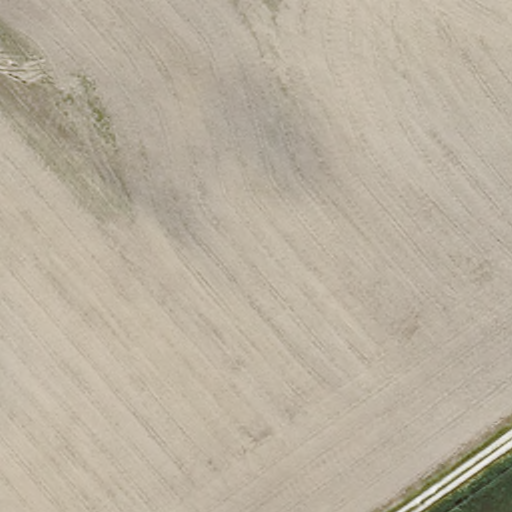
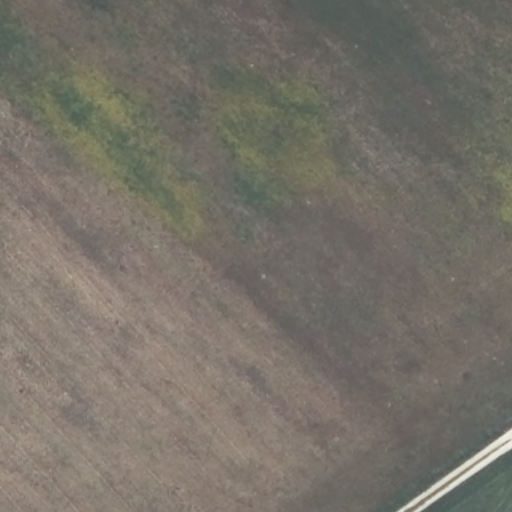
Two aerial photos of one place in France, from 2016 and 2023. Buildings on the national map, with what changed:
[]

